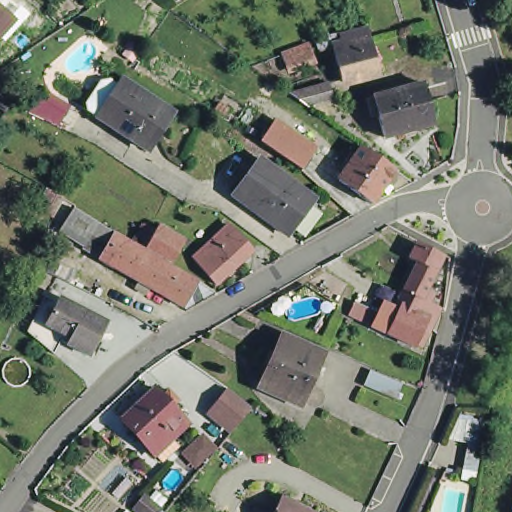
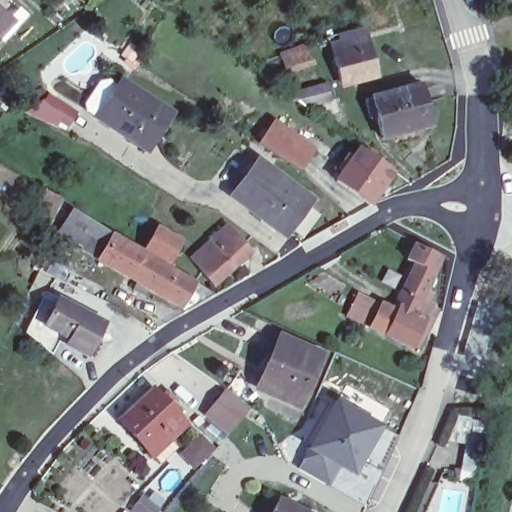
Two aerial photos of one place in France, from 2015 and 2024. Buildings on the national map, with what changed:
unchanged [(0,34),(0,14),(10,23),(0,34)]
unchanged [(344,92),(337,66),(337,65),(283,79),(277,58),(331,43),(338,40),(335,28),(364,20),(367,32),(373,56),(380,84),(344,92)]
unchanged [(337,118),(319,122),(287,96),(331,84),(337,118)]
unchanged [(165,141),(163,140),(152,156),(113,130),(105,124),(95,117),(93,110),(105,91),(120,101),(130,87),(131,87),(180,119),(165,141)]
unchanged [(422,89),(434,130),(383,144),(377,123),(371,124),(367,106),(372,105),(372,103),(422,89)]
unchanged [(281,149),(262,137),(275,117),(295,131),(318,146),(305,165),(281,149)]
unchanged [(340,185),(362,155),(395,177),(373,208),(340,185)]
unchanged [(290,241),(236,203),(261,168),(314,206),(290,241)]
unchanged [(141,282),(103,260),(104,258),(88,249),(62,234),(71,218),(66,215),(70,208),(75,211),(117,236),(200,282),(185,307),(153,288),(148,296),(137,290),(141,282)]
unchanged [(147,248),(157,231),(181,246),(171,263),(147,248)]
unchanged [(253,253),(218,284),(204,268),(196,259),(215,244),(223,251),(240,237),(253,253)]
unchanged [(383,339),(346,321),(352,308),(363,314),(361,317),(365,319),(367,315),(375,319),(378,311),(390,317),(401,296),(413,270),(407,267),(413,258),(418,260),(420,258),(437,268),(420,302),(424,305),(422,309),(420,313),(430,318),(428,320),(432,322),(424,340),(418,337),(410,353),(383,339)]
unchanged [(76,344),(75,343),(65,356),(40,333),(60,298),(72,306),(62,327),(80,338),(76,344)]
unchanged [(76,301),(120,326),(102,358),(76,344),(80,338),(62,327),(72,306),(76,301)]
unchanged [(278,347),(318,365),(295,414),(256,396),(278,347)]
demolished [(362,369),(393,383),(386,397),(355,383),(362,369)]
unchanged [(212,404),(223,392),(247,412),(237,424),(227,435),(203,414),(212,404)]
new [(383,423),(356,475),(340,465),(330,487),(297,469),(306,446),(337,396),(383,423)]
unchanged [(163,470),(158,465),(121,428),(154,398),(163,407),(170,401),(177,408),(177,411),(172,416),(190,433),(173,449),(179,454),(163,470)]
unchanged [(465,479),(455,477),(465,420),(475,422),(465,479)]
unchanged [(308,512),(274,512),(280,498),(308,512)]

